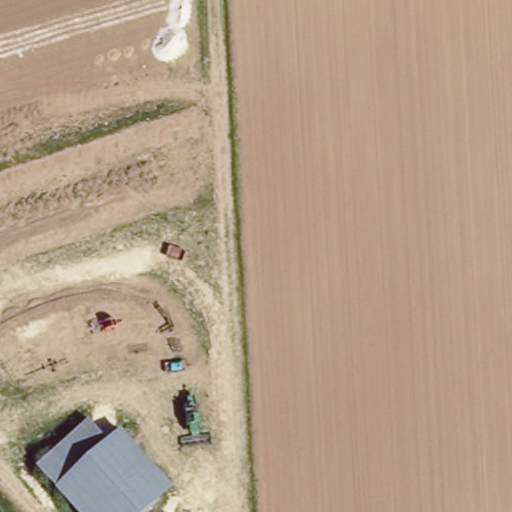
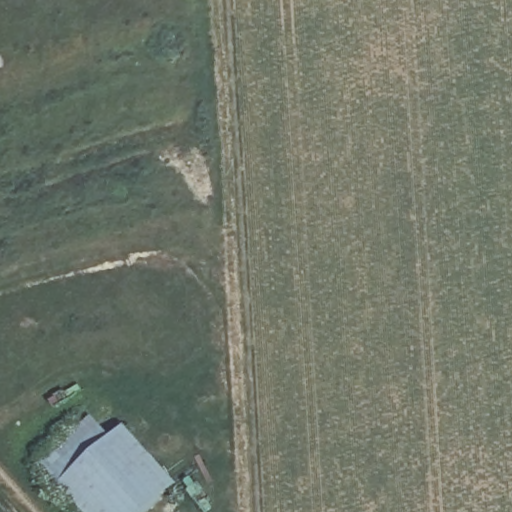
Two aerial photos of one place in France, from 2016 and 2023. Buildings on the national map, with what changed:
unchanged [(81,423),(100,445),(52,488),(32,467),(81,423)]
unchanged [(100,445),(116,430),(170,487),(143,512),(73,512),(52,488),(100,445)]

